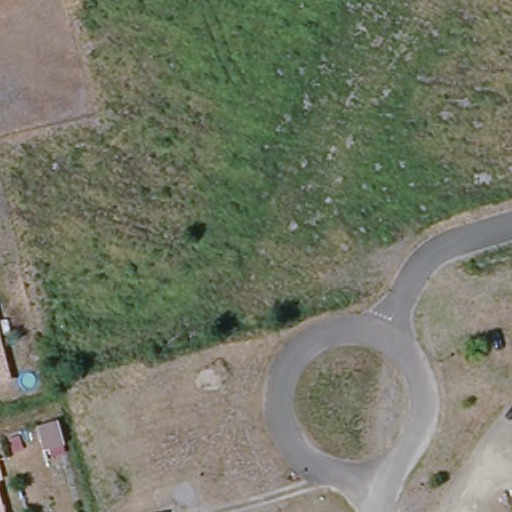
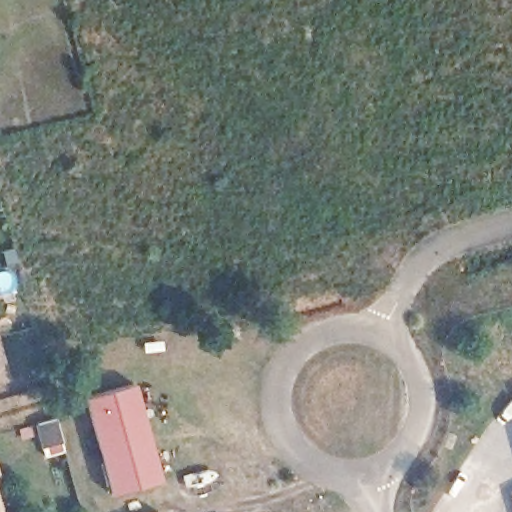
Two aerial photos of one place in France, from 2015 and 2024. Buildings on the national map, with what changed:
unchanged [(4,378),(0,379),(0,362),(4,378)]
new [(164,481),(113,497),(85,398),(137,383),(164,481)]
unchanged [(62,429),(69,454),(50,459),(43,435),(62,429)]
unchanged [(2,468),(6,486),(0,487),(0,469),(2,468)]
unchanged [(5,512),(0,512),(0,491),(5,512)]
unchanged [(158,511),(158,512),(155,512),(158,511)]

